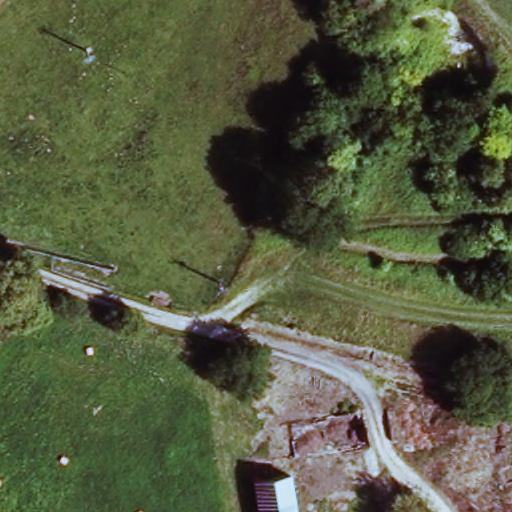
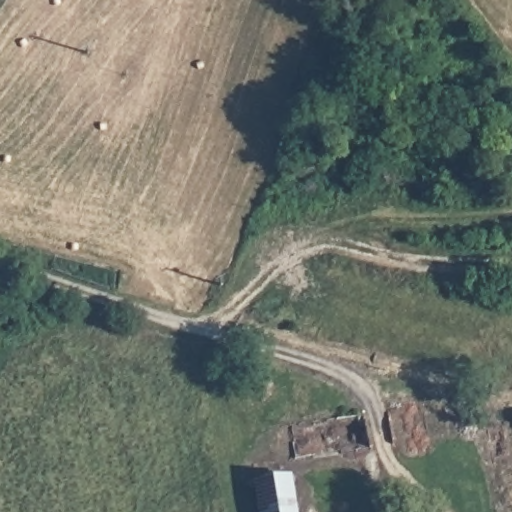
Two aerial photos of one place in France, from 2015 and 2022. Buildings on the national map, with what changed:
unchanged [(290,482),(295,512),(260,512),(255,489),(290,482)]

